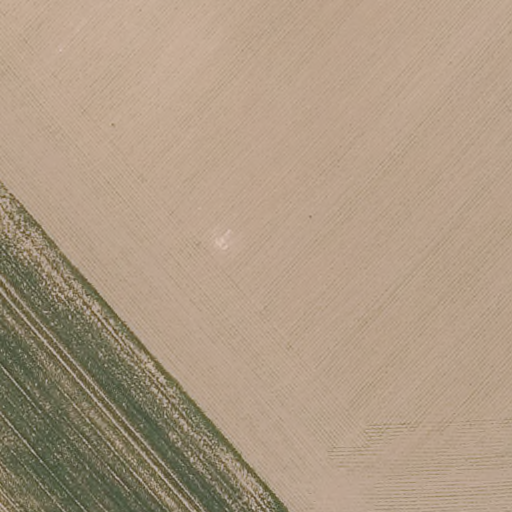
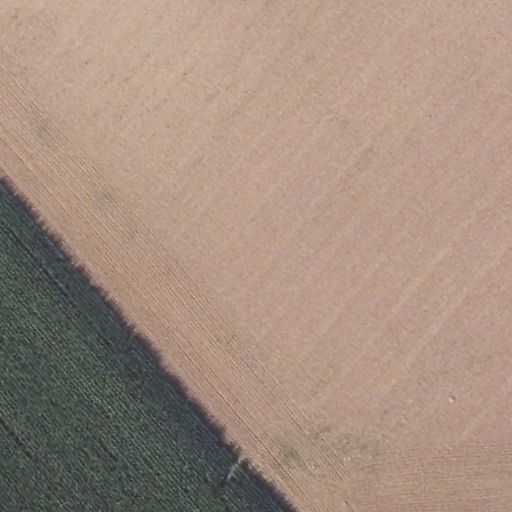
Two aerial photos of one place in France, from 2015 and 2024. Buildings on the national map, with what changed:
[]

